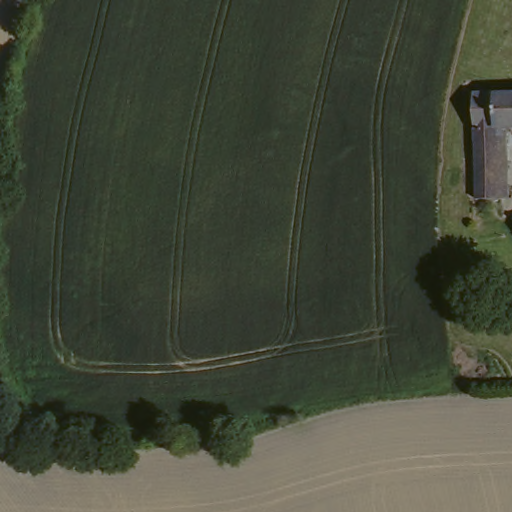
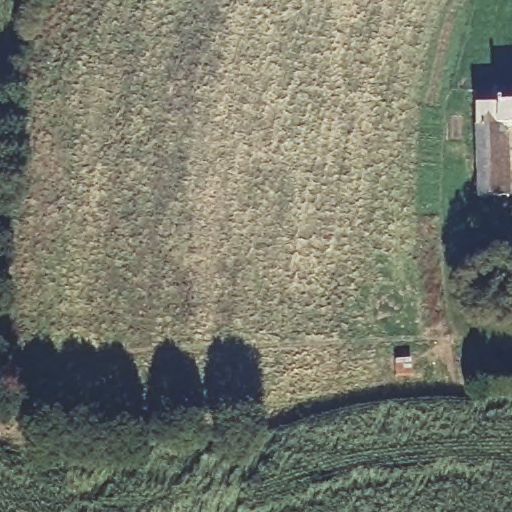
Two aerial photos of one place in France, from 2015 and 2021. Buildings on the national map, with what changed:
unchanged [(504,202),(471,203),(468,99),(489,98),(512,97),(512,131),(501,132),(504,202)]

